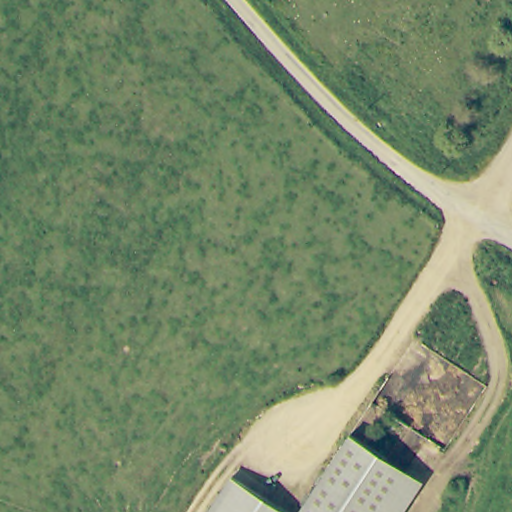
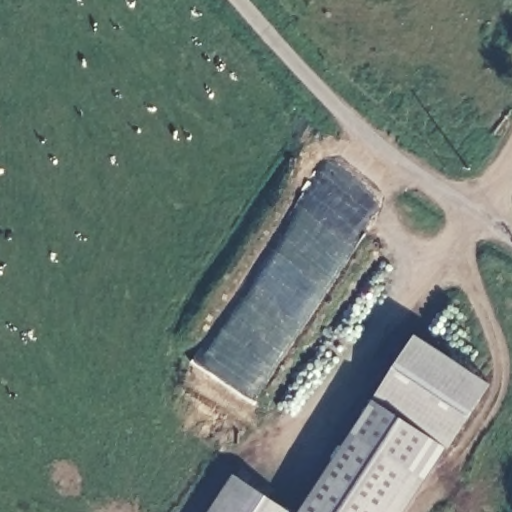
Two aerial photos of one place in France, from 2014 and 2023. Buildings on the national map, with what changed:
new [(405,470),(385,457),(349,433),(414,335),(490,385),(448,450),(444,447),(402,512),(377,512),(405,470)]
unchanged [(349,433),(385,457),(405,470),(377,512),(296,512),(349,433)]
unchanged [(231,474),(288,512),(206,512),(231,474)]

